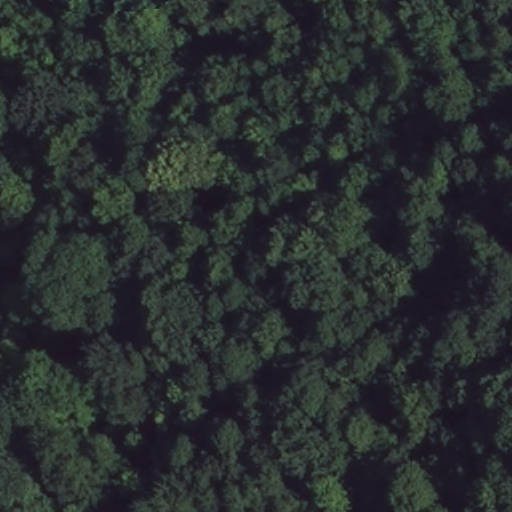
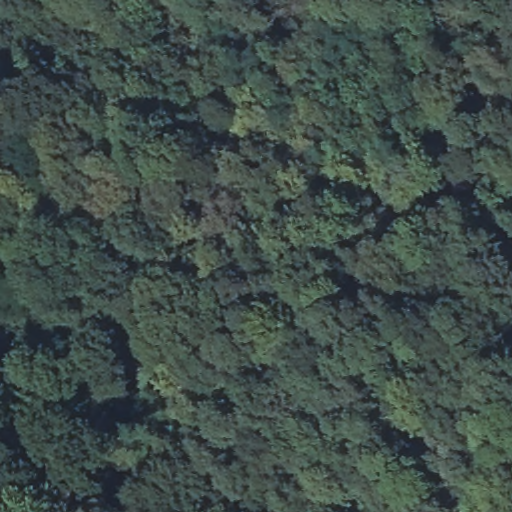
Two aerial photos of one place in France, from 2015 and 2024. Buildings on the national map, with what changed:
[]

